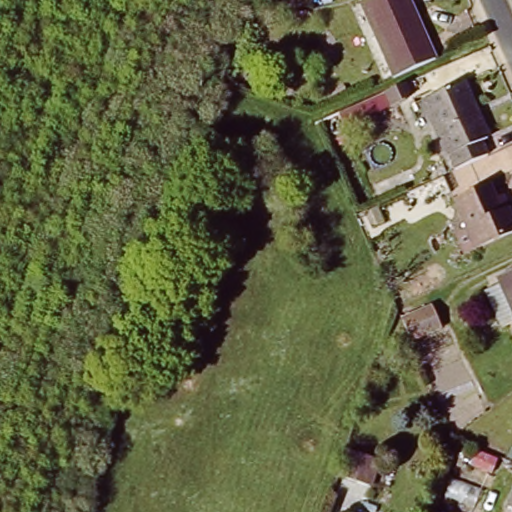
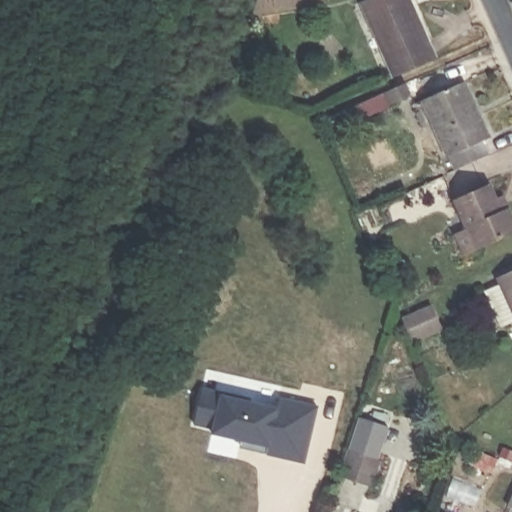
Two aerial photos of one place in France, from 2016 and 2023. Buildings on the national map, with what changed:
unchanged [(436,52),(395,71),(363,0),(413,0),(436,52)]
unchanged [(462,80),(488,137),(482,139),(489,154),(455,169),(424,98),(462,80)]
unchanged [(400,82),(405,92),(402,97),(386,104),(380,91),(400,82)]
unchanged [(455,194),(490,179),(497,193),(503,190),(509,203),(512,211),(512,226),(477,242),(465,247),(456,227),(468,222),(455,194)]
unchanged [(498,271),(512,265),(512,316),(502,321),(485,284),(501,277),(498,271)]
unchanged [(428,305),(437,325),(407,338),(398,318),(428,305)]
new [(239,448),(242,440),(211,433),(212,428),(192,424),(202,386),(245,396),(249,400),(279,407),(278,398),(318,407),(305,463),(239,448)]
new [(339,476),(358,417),(390,425),(380,459),(382,460),(374,486),(339,476)]
demolished [(355,449),(385,459),(377,486),(346,476),(355,449)]
unchanged [(473,450),(492,458),(487,471),(467,463),(473,450)]
unchanged [(512,500),(512,507),(510,506),(512,500)]

